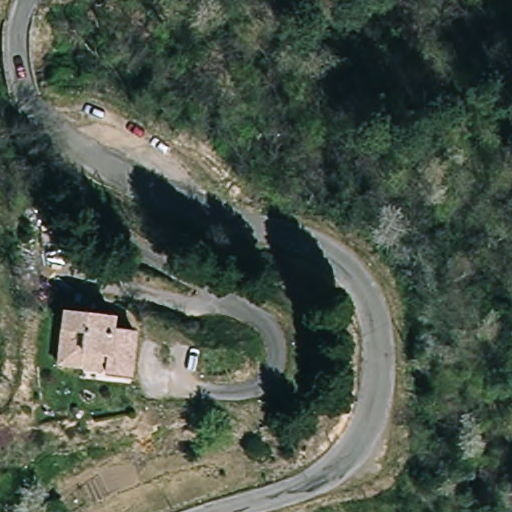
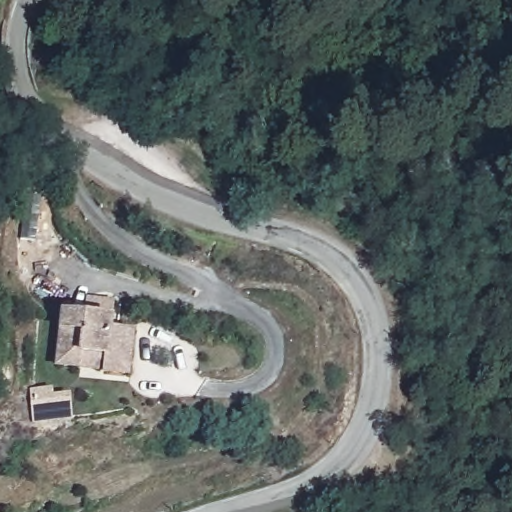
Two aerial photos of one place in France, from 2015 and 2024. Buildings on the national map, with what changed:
unchanged [(61,368),(68,317),(102,321),(112,322),(111,326),(138,330),(132,376),(116,375),(106,373),(86,371),(61,368)]

